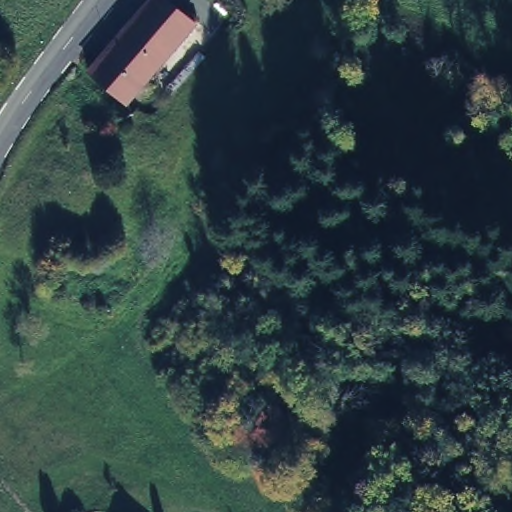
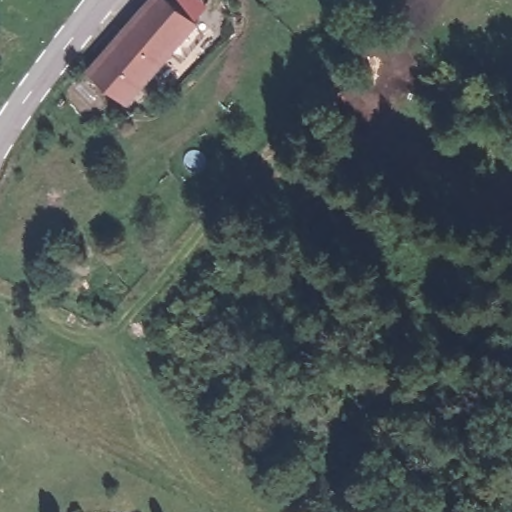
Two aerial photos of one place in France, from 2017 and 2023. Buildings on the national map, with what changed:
unchanged [(190,21),(121,104),(85,72),(149,0),(165,0),(190,21)]

